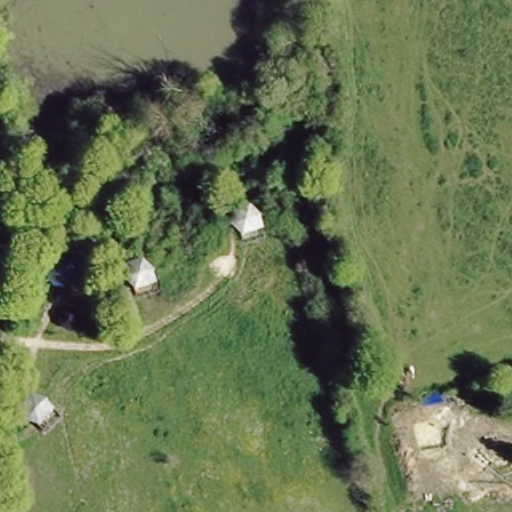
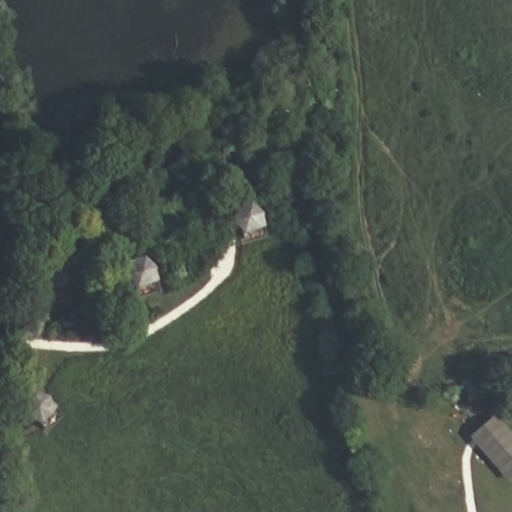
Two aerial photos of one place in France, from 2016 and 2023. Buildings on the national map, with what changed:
new [(507,482),(469,436),(495,414),(512,434),(512,478),(507,482)]

